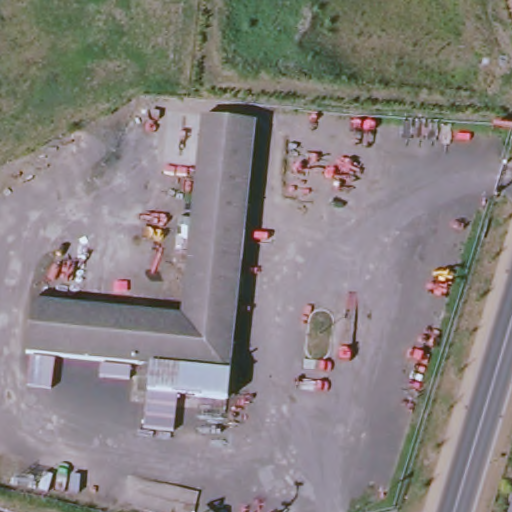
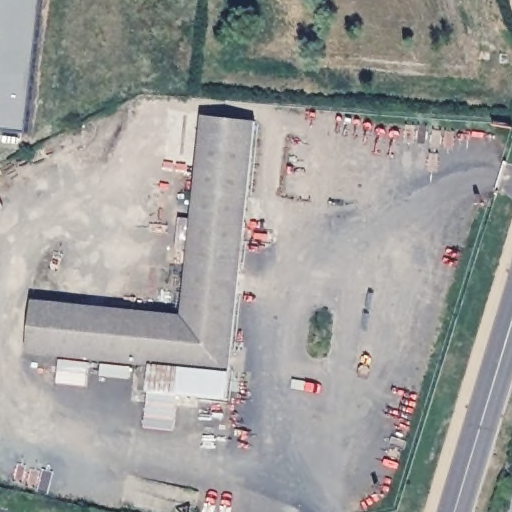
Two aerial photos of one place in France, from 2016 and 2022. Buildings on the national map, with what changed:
new [(0,129),(0,0),(41,0),(26,132),(0,129)]
unchanged [(180,316),(201,118),(255,123),(225,400),(197,396),(200,372),(147,367),(26,353),(32,299),(180,316)]
unchanged [(200,372),(197,396),(176,394),(174,432),(143,431),(147,367),(200,372)]

